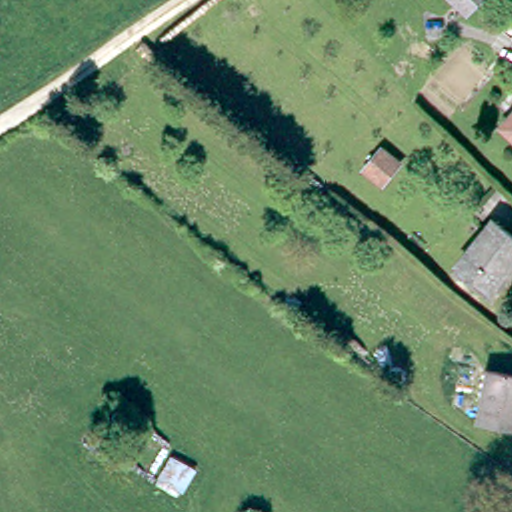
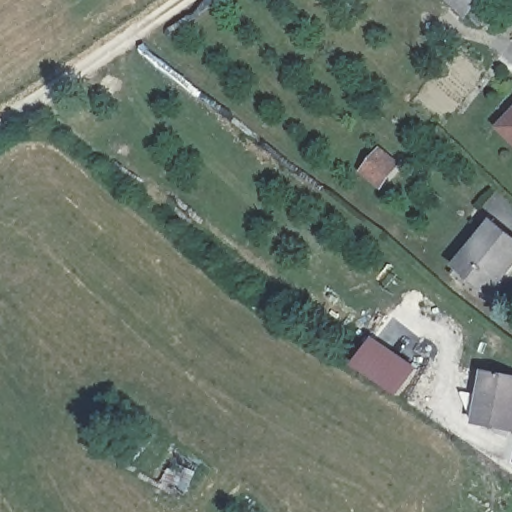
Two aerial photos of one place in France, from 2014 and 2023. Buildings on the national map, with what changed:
unchanged [(473,9),(462,21),(440,0),(481,0),(473,9)]
unchanged [(498,128),(512,112),(512,142),(498,128)]
unchanged [(400,171),(385,188),(368,173),(384,157),(400,171)]
unchanged [(492,222),(512,239),(512,264),(487,293),(453,265),(492,222)]
new [(420,368),(402,397),(355,366),(374,337),(420,368)]
unchanged [(512,377),(512,430),(470,424),(479,372),(512,377)]
unchanged [(197,470),(187,496),(155,484),(169,457),(197,470)]

